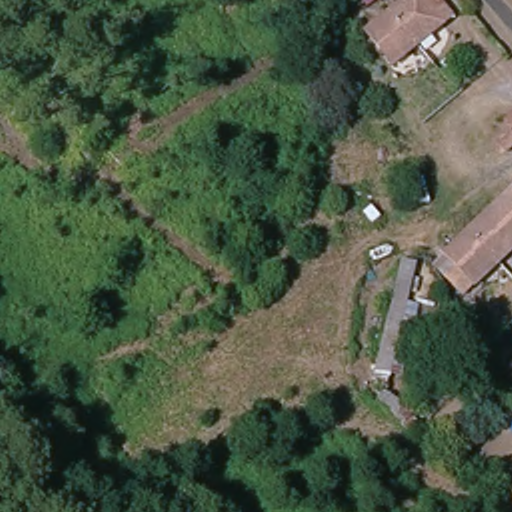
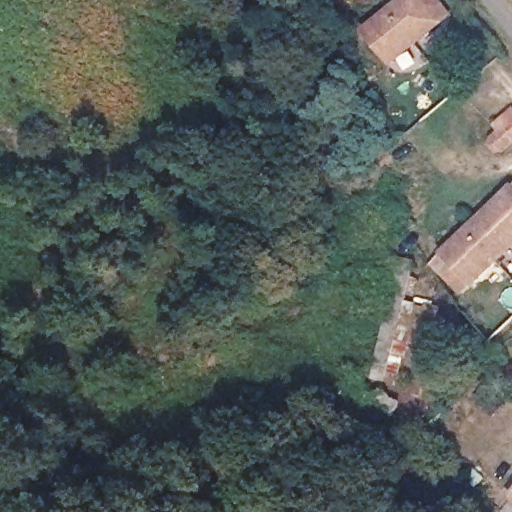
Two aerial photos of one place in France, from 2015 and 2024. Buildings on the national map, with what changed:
unchanged [(374,36),(415,0),(428,0),(447,22),(399,64),(374,36)]
unchanged [(512,110),(512,145),(503,153),(486,138),(512,110)]
unchanged [(413,210),(403,177),(428,167),(434,202),(413,210)]
unchanged [(471,278),(444,254),(467,231),(512,185),(512,236),(483,267),(471,278)]

